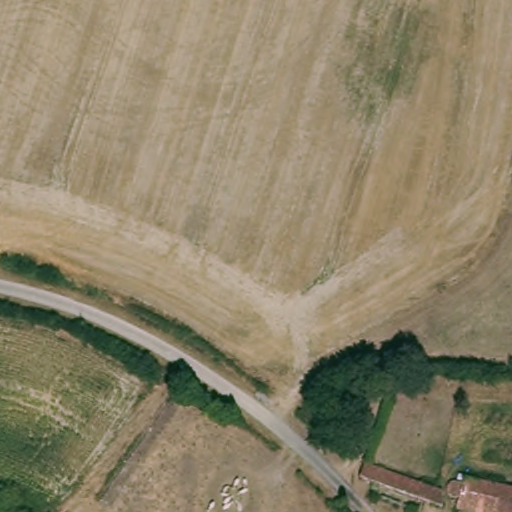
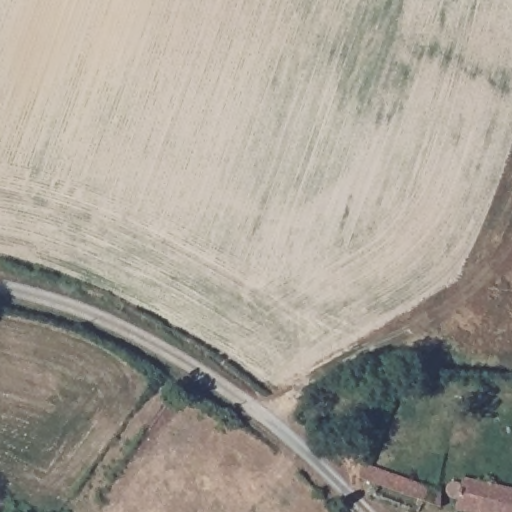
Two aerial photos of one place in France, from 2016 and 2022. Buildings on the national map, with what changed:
unchanged [(372,467),(447,494),(447,512),(431,506),(384,489),(366,482),(372,467)]
unchanged [(465,503),(456,500),(454,495),(456,490),(459,486),(463,483),(470,485),(471,480),(512,490),(512,512),(467,512),(463,511),(465,503)]

